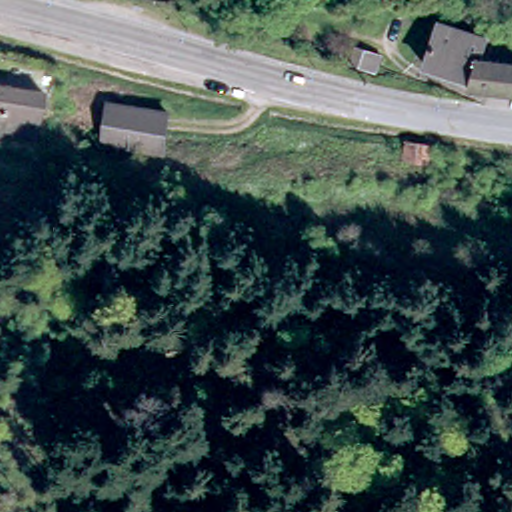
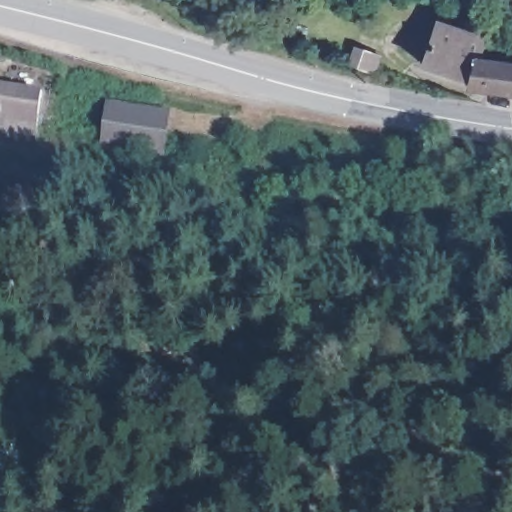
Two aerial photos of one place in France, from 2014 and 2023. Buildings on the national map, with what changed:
unchanged [(485,41),(478,61),(470,81),(424,67),(438,24),(481,39),(485,41)]
unchanged [(512,30),(512,65),(478,61),(485,41),(481,39),(482,32),(485,24),(512,30)]
unchanged [(470,81),(478,61),(512,65),(512,94),(468,87),(470,81)]
unchanged [(398,69),(396,77),(380,73),(381,65),(398,69)]
unchanged [(38,140),(0,135),(0,76),(46,81),(38,140)]
unchanged [(103,96),(165,105),(183,108),(180,131),(162,128),(160,145),(98,136),(103,96)]
unchanged [(408,142),(431,146),(430,163),(405,161),(408,142)]

